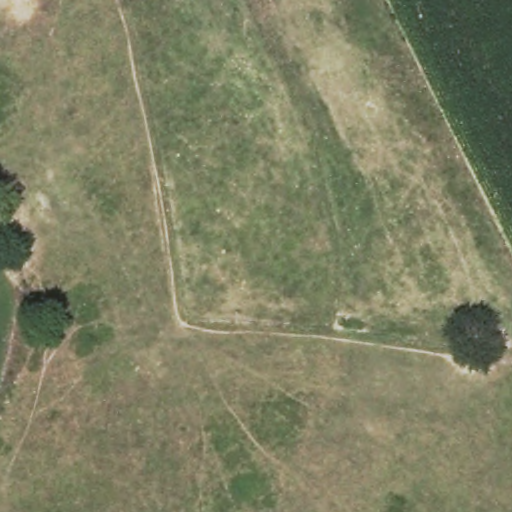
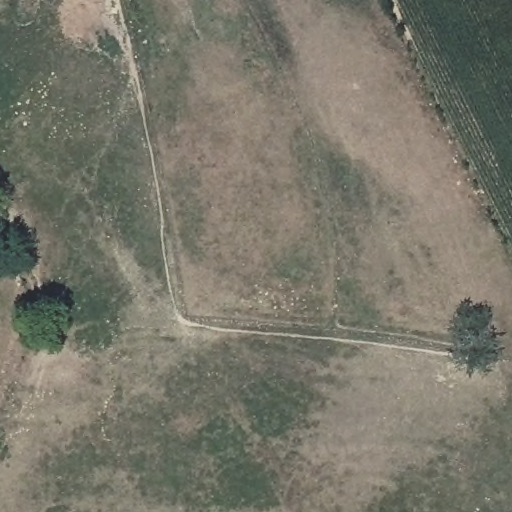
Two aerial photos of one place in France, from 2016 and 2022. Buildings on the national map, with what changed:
unchanged [(1,229),(0,228),(0,203),(4,202),(14,223),(1,229)]

